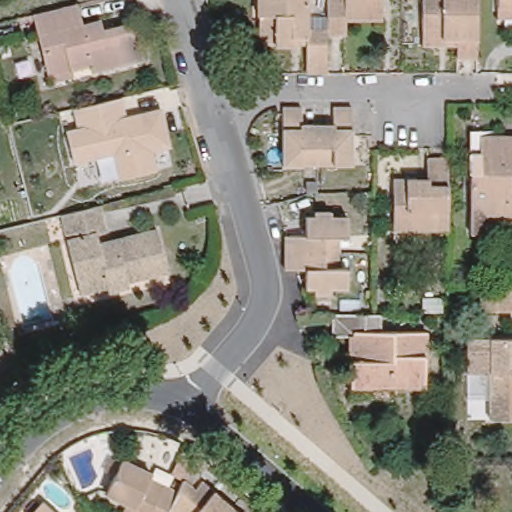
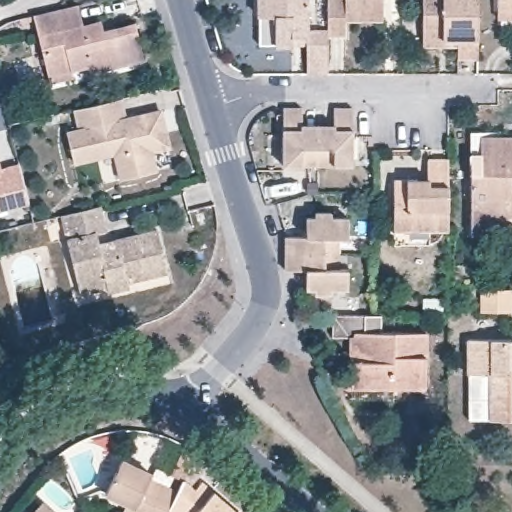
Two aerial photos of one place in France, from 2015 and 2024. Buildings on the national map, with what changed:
unchanged [(280,52),(280,21),(264,21),(264,0),(313,0),(313,22),(333,23),(333,41),(333,80),(311,81),(311,52),(298,52),(280,52)]
unchanged [(333,41),(333,23),(333,0),(387,0),(388,10),(388,25),(350,25),(350,40),(333,41)]
unchanged [(423,31),(423,0),(478,0),(477,58),(457,58),(457,45),(423,45),(423,31)]
unchanged [(499,18),(499,7),(498,0),(512,0),(512,18),(499,18)]
unchanged [(50,82),(48,76),(34,16),(78,6),(83,24),(101,19),(104,29),(135,21),(144,60),(97,72),(90,67),(70,71),(72,78),(50,82)]
unchanged [(164,110),(171,147),(155,151),(160,167),(106,179),(100,156),(74,161),(68,131),(164,110)]
unchanged [(359,170),(289,171),(288,113),(307,113),(306,129),(339,130),(339,113),(358,113),(359,170)]
unchanged [(462,225),(462,183),(471,183),(471,145),(509,145),(509,134),(512,134),(512,225),(462,225)]
unchanged [(447,231),(395,231),(395,178),(427,178),(428,158),(447,158),(447,231)]
new [(28,204),(0,210),(0,168),(19,163),(28,204)]
unchanged [(107,204),(113,231),(102,233),(104,243),(162,229),(173,273),(133,283),(134,288),(113,293),(112,288),(85,294),(66,214),(107,204)]
unchanged [(290,246),(310,246),(311,228),(320,228),(320,222),(336,222),(336,227),(354,226),(354,247),(331,247),(331,278),(352,278),(353,298),(336,298),(336,303),(319,303),(319,299),(310,299),(310,280),(291,281),(290,246)]
unchanged [(480,311),(480,287),(512,287),(512,311),(480,311)]
unchanged [(351,403),(351,387),(350,335),(334,336),(334,315),(371,315),(380,315),(380,334),(425,333),(425,387),(393,387),(393,403),(351,403)]
unchanged [(479,373),(467,373),(467,340),(512,340),(512,420),(490,420),(490,398),(479,398),(479,373)]
unchanged [(109,490),(125,454),(156,469),(154,474),(181,487),(169,512),(133,512),(126,509),(130,500),(109,490)]
unchanged [(187,475),(199,486),(207,478),(246,512),(169,512),(181,487),(187,475)]
unchanged [(58,512),(30,512),(43,498),(58,512)]

